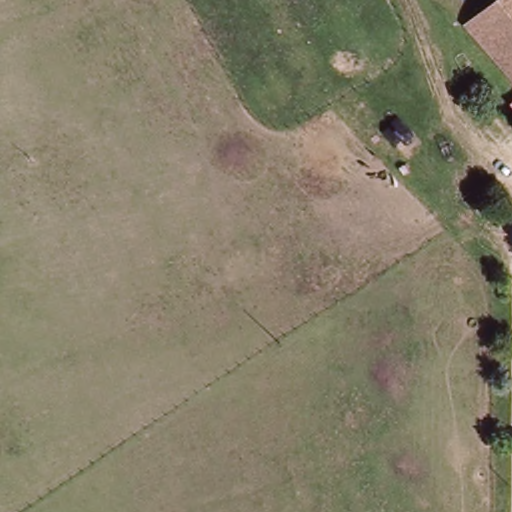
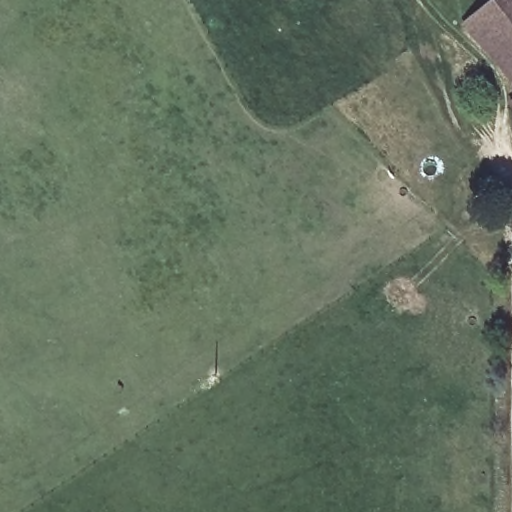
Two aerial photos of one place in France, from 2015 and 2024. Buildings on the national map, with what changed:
unchanged [(480,20),(509,0),(512,0),(512,72),(503,58),(480,20)]

